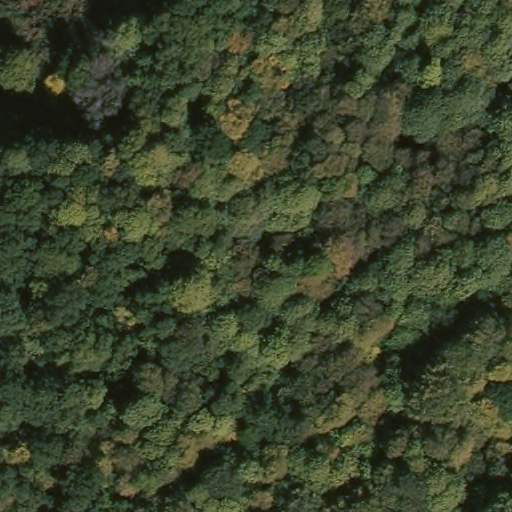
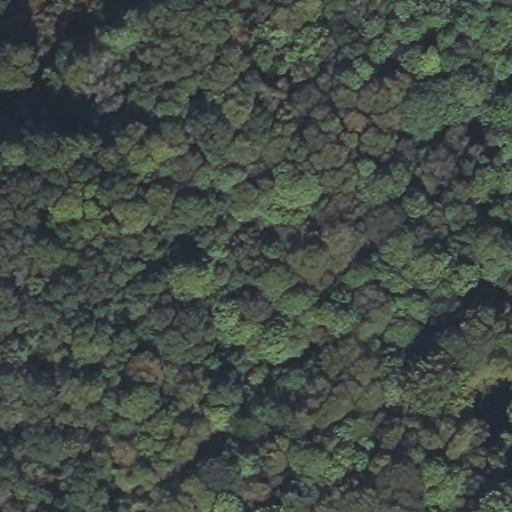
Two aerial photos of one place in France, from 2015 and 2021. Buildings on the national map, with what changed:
[]

